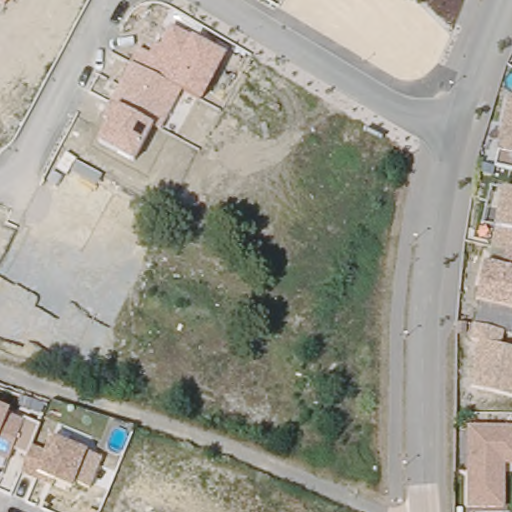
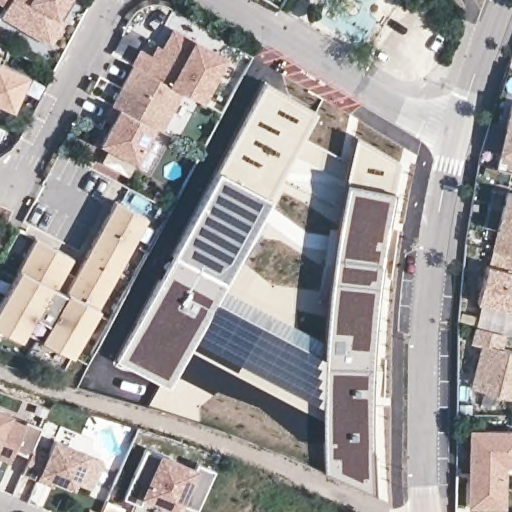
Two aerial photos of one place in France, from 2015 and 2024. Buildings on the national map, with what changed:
unchanged [(7,7),(0,3),(0,0),(11,0),(7,7)]
new [(61,17),(65,19),(49,46),(1,17),(7,7),(11,0),(68,0),(61,17)]
unchanged [(111,122),(105,119),(132,68),(142,52),(150,57),(155,45),(161,49),(173,28),(195,39),(226,55),(203,101),(182,90),(159,135),(153,131),(136,164),(98,145),(111,122)]
new [(16,114),(0,107),(0,66),(31,79),(16,114)]
new [(399,161),(391,189),(394,189),(381,263),(376,315),(372,378),(374,445),(377,496),(326,475),(324,448),(323,413),(323,406),(197,338),(170,387),(117,359),(217,168),(265,80),(317,111),(270,198),(216,301),(325,359),(326,319),(331,264),(340,209),(345,180),(355,135),(399,161)]
unchanged [(496,169),(510,105),(512,105),(512,173),(496,169)]
unchanged [(487,250),(501,192),(512,195),(512,255),(500,253),(487,250)]
unchanged [(34,237),(72,256),(61,276),(71,281),(113,202),(144,219),(70,358),(24,333),(19,342),(0,331),(0,303),(34,237)]
unchanged [(478,266),(496,270),(500,253),(512,255),(512,313),(470,303),(478,266)]
unchanged [(502,335),(498,350),(512,353),(512,401),(469,391),(480,347),(470,345),(474,329),(498,334),(502,335)]
unchanged [(10,415),(8,419),(24,425),(25,422),(41,428),(33,448),(28,458),(14,452),(9,463),(0,459),(0,411),(10,415)]
unchanged [(512,431),(512,466),(503,466),(502,509),(474,508),(467,508),(468,431),(502,431),(512,431)]
unchanged [(28,458),(33,448),(47,454),(53,440),(88,454),(73,489),(40,475),(38,480),(22,474),(28,458)]
new [(144,448),(195,469),(198,463),(214,470),(196,511),(179,503),(177,510),(142,496),(139,504),(123,498),(144,448)]

